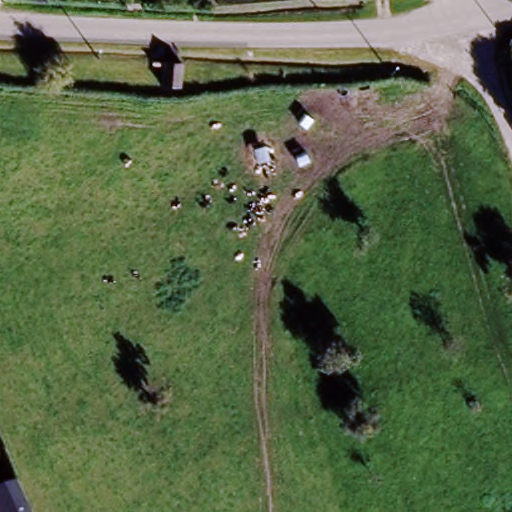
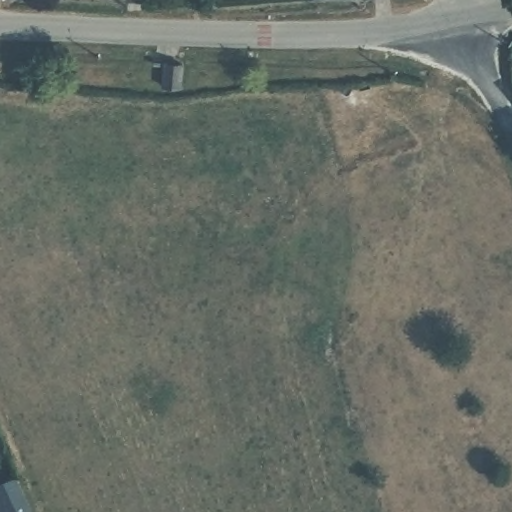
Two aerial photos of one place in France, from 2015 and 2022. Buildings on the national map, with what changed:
unchanged [(306,4),(306,0),(346,0),(306,4)]
unchanged [(156,66),(178,64),(181,90),(159,94),(156,66)]
unchanged [(0,511),(0,475),(5,473),(24,512),(3,512),(2,510),(0,511)]

